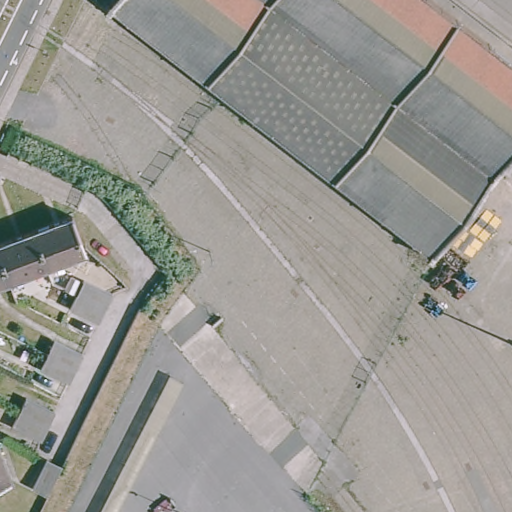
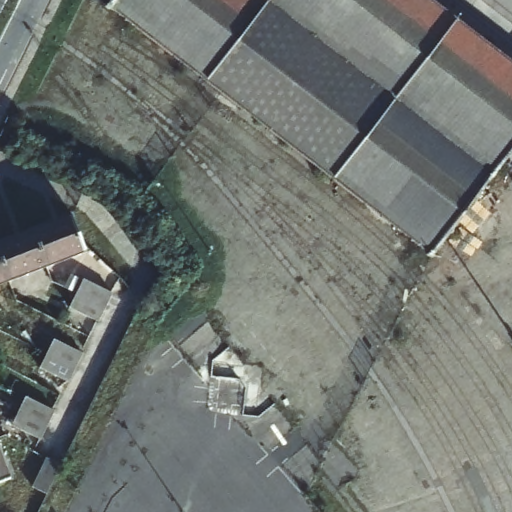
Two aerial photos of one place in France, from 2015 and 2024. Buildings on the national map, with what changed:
unchanged [(357,201),(296,154),(209,87),(104,5),(108,0),(429,0),(483,42),(512,65),(512,146),(474,195),(427,255),(357,201)]
unchanged [(86,252),(46,268),(32,232),(70,216),(72,222),(81,242),(86,252)]
unchanged [(10,285),(0,262),(0,246),(32,232),(46,268),(10,285)]
unchanged [(0,289),(0,262),(10,285),(0,289)]
unchanged [(95,320),(72,303),(80,288),(89,275),(113,291),(105,305),(95,320)]
unchanged [(57,337),(80,353),(74,365),(66,379),(41,361),(50,348),(57,337)]
unchanged [(29,393),(55,410),(46,423),(37,436),(12,417),(22,405),(29,393)]
unchanged [(34,484),(52,454),(64,465),(46,493),(34,484)]
unchanged [(0,483),(0,457),(8,480),(0,483)]

